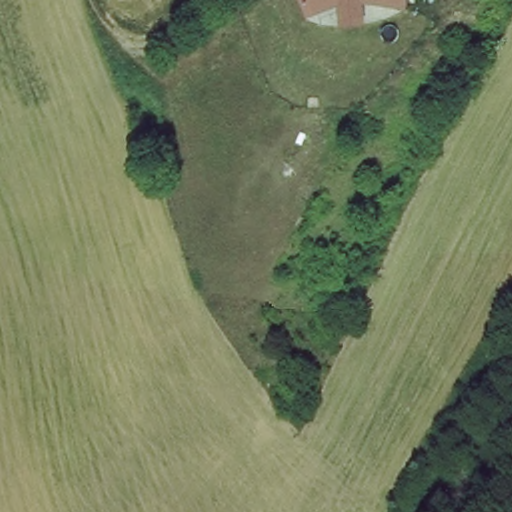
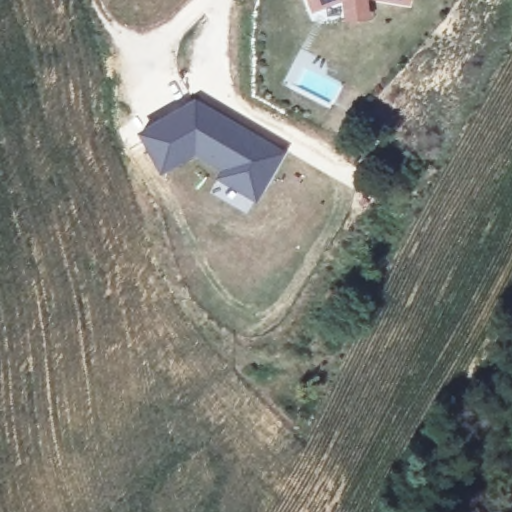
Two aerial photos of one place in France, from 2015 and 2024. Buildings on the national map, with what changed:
unchanged [(340,18),(338,1),(306,10),(303,0),(366,0),(366,15),(340,18)]
unchanged [(387,0),(405,0),(405,2),(387,0)]
new [(196,100),(285,153),(256,201),(215,179),(219,170),(194,154),(160,174),(137,132),(196,100)]

